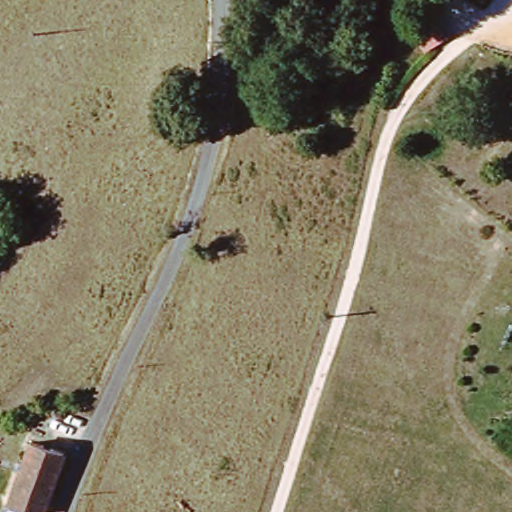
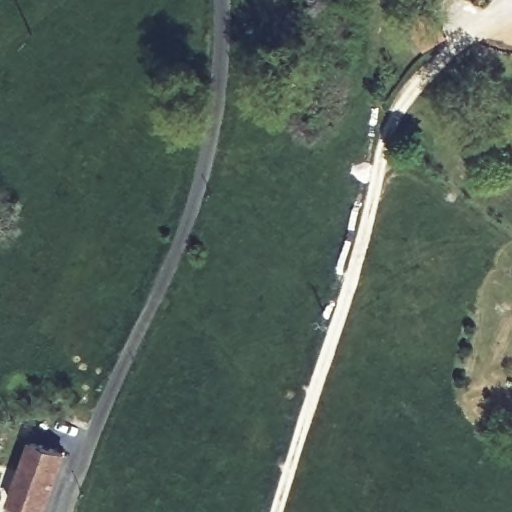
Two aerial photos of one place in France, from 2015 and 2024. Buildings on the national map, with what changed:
unchanged [(60,458),(42,512),(3,512),(0,511),(0,506),(22,444),(60,458)]

